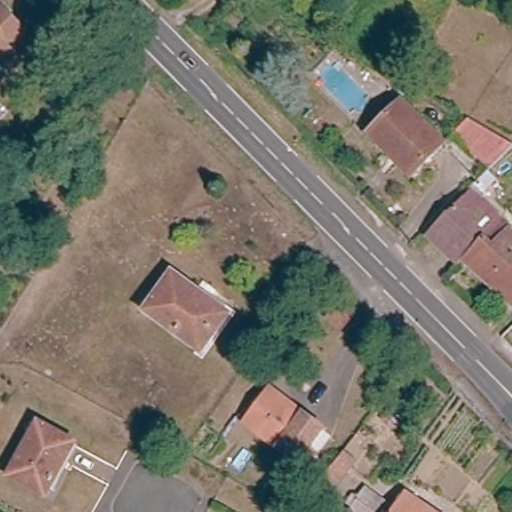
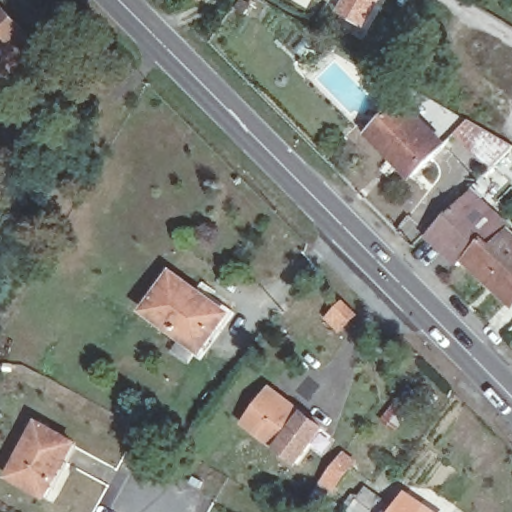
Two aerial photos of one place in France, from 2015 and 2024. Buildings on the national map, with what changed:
new [(340,14),(344,8),(329,0),(386,0),(369,30),(340,14)]
unchanged [(21,35),(32,45),(8,69),(0,61),(0,9),(24,33),(21,35)]
unchanged [(439,146),(408,176),(367,137),(398,107),(439,146)]
unchanged [(449,137),(465,120),(511,147),(486,172),(449,137)]
unchanged [(458,249),(453,254),(428,232),(469,188),(512,230),(512,302),(507,296),(458,249)]
unchanged [(223,314),(198,347),(145,308),(169,273),(223,314)]
unchanged [(344,338),(325,324),(339,302),(359,316),(344,338)]
unchanged [(320,427),(294,460),(243,423),(259,400),(253,397),(260,387),(266,392),(268,389),(320,427)]
unchanged [(397,400),(406,408),(393,426),(383,418),(397,400)]
unchanged [(36,421),(72,441),(43,493),(7,473),(36,421)]
unchanged [(341,451),(349,457),(352,460),(331,487),(330,486),(321,479),(341,451)]
unchanged [(356,512),(352,509),(369,485),(384,496),(391,501),(383,512),(356,512)]
unchanged [(434,512),(397,512),(410,494),(434,512)]

